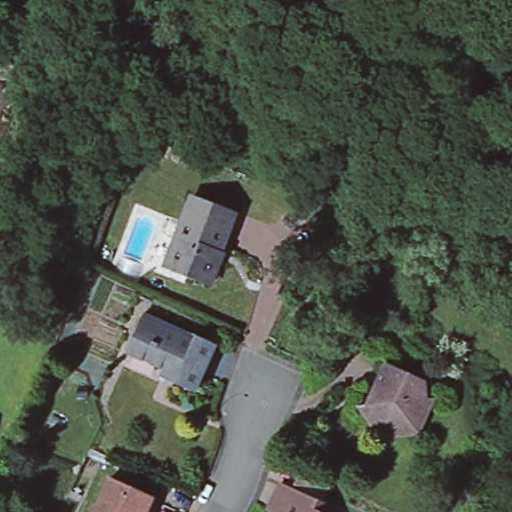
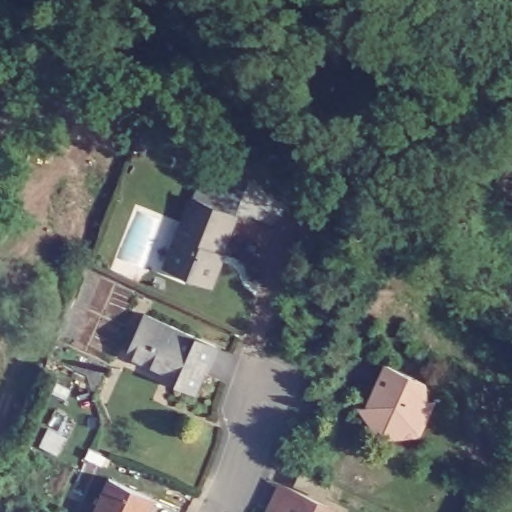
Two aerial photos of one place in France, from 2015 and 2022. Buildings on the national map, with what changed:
unchanged [(238,214),(219,259),(223,259),(213,284),(173,267),(182,244),(176,242),(176,240),(194,197),(238,214)]
unchanged [(145,314),(216,344),(198,389),(178,382),(179,376),(143,360),(128,354),(134,339),(145,314)]
unchanged [(429,383),(428,411),(426,418),(422,424),(418,429),(411,433),(404,436),(396,436),(386,433),(379,428),(374,423),(371,418),(369,413),(369,407),(375,393),(376,393),(389,368),(429,383)]
unchanged [(149,499),(144,512),(92,512),(107,480),(149,499)]
unchanged [(294,498),(324,512),(286,512),(294,498)]

